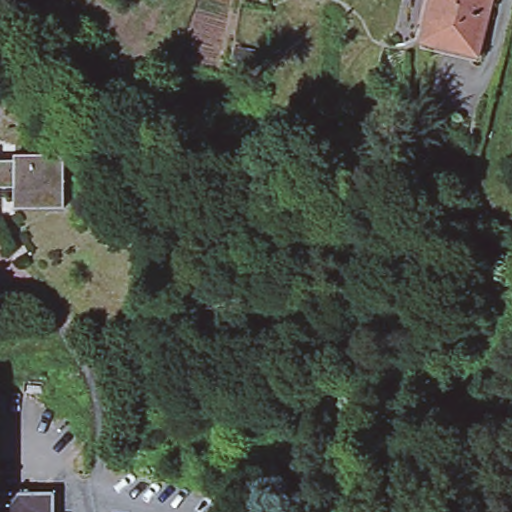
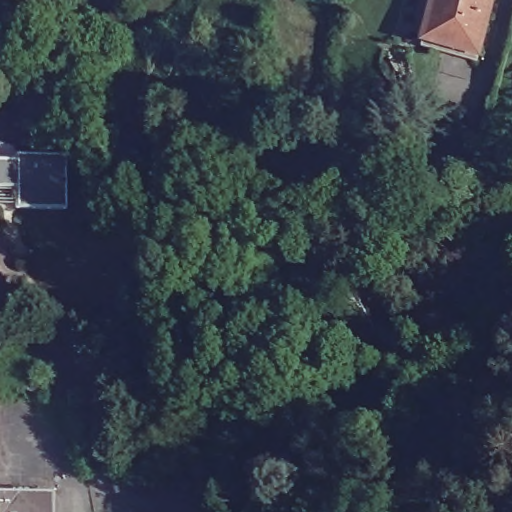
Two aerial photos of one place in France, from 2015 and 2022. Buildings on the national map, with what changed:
unchanged [(434,0),(494,0),(479,54),(433,43),(423,40),(432,7),(434,0)]
unchanged [(41,82),(31,97),(19,89),(28,74),(41,82)]
unchanged [(15,163),(15,158),(64,159),(62,217),(13,217),(13,190),(0,190),(0,163),(15,163)]
unchanged [(54,512),(0,512),(0,491),(53,491),(54,512)]

